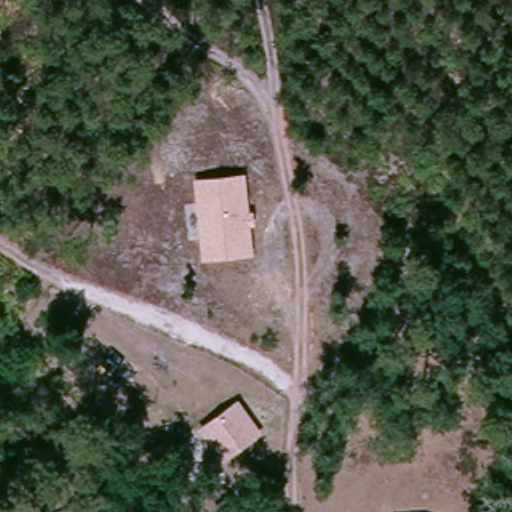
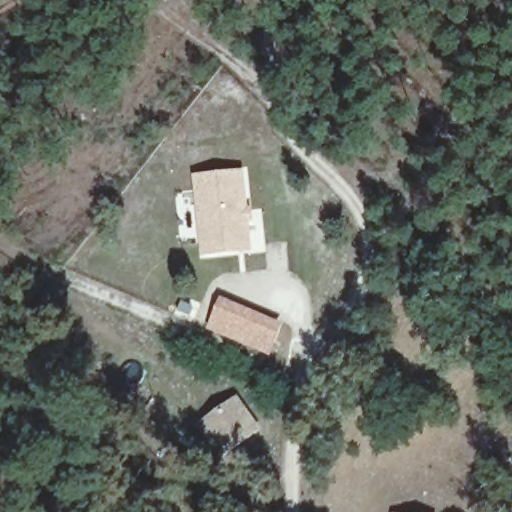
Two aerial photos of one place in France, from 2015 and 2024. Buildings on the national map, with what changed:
unchanged [(245,172),(249,207),(255,206),(258,222),(251,224),(255,254),(202,260),(195,177),(245,172)]
new [(208,331),(221,299),(284,326),(270,358),(208,331)]
unchanged [(265,433),(225,463),(197,426),(239,396),(265,433)]

